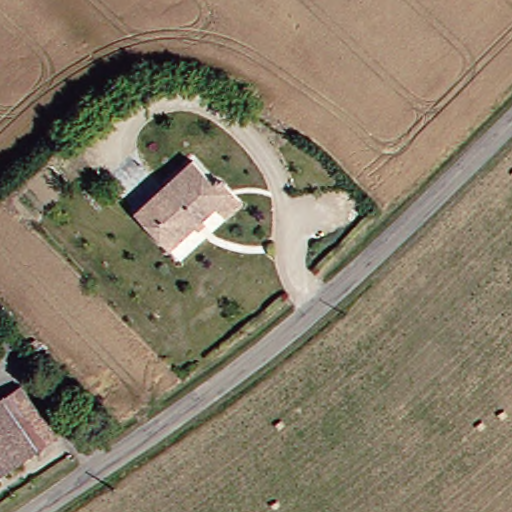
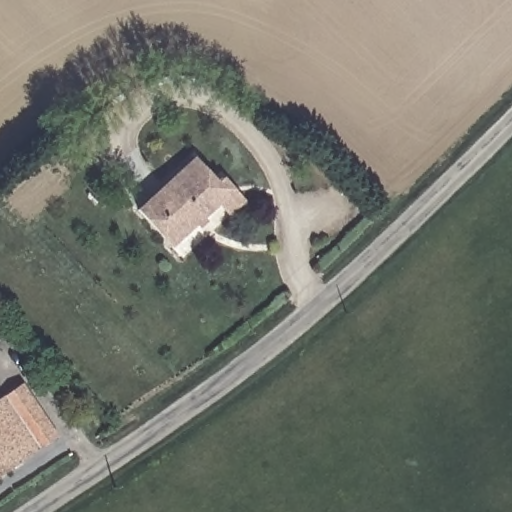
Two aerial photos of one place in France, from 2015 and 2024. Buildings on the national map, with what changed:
unchanged [(125,212),(171,168),(186,153),(210,177),(231,201),(216,215),(196,192),(194,194),(205,205),(203,206),(160,249),(125,212)]
unchanged [(0,467),(0,392),(15,382),(46,435),(0,467)]

